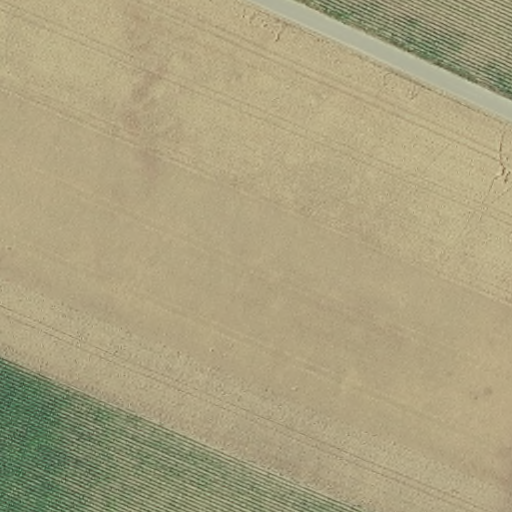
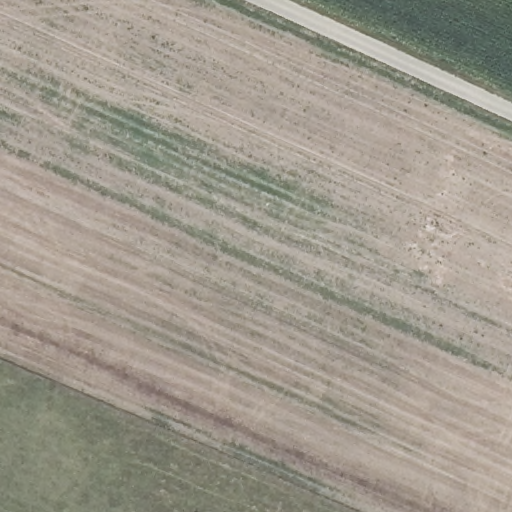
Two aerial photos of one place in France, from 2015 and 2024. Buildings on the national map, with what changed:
[]

